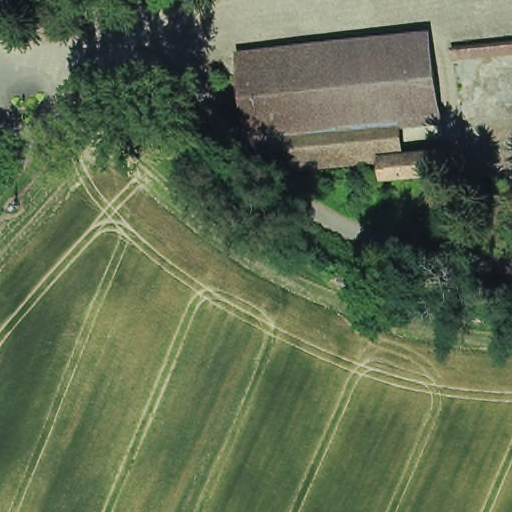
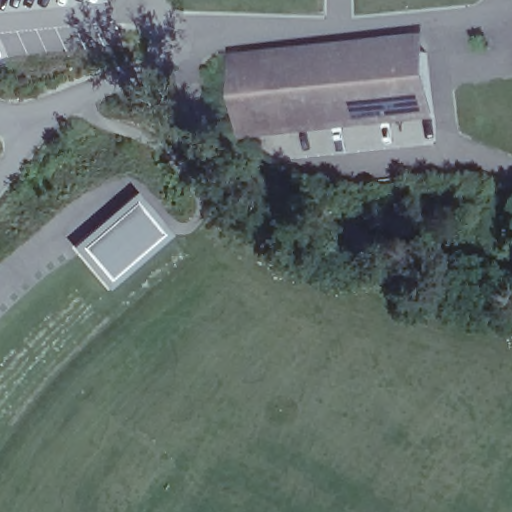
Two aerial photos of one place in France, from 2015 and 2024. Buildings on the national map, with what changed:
unchanged [(232,53),(422,33),(429,94),(387,98),(238,114),(232,53)]
unchanged [(390,137),(369,139),(286,149),(272,147),(242,124),(238,114),(387,98),(390,137)]
demolished [(433,133),(435,153),(372,159),(369,139),(390,137),(433,133)]
new [(106,290),(69,247),(134,191),(171,233),(106,290)]

